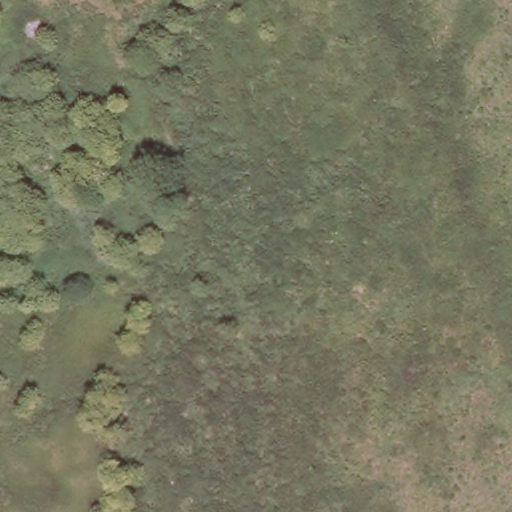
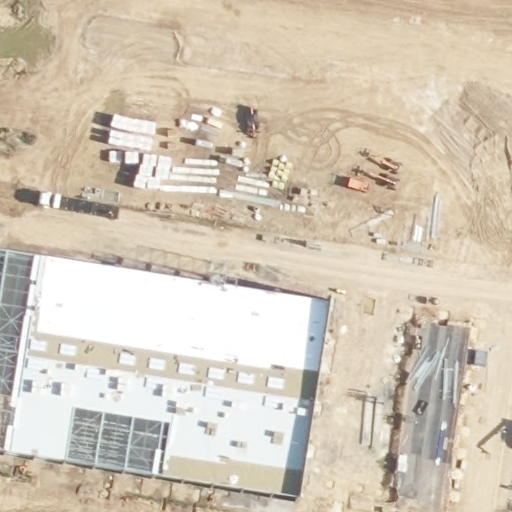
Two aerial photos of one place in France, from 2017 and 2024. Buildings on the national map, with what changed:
new [(0,254),(328,303),(299,500),(0,454),(0,254)]

